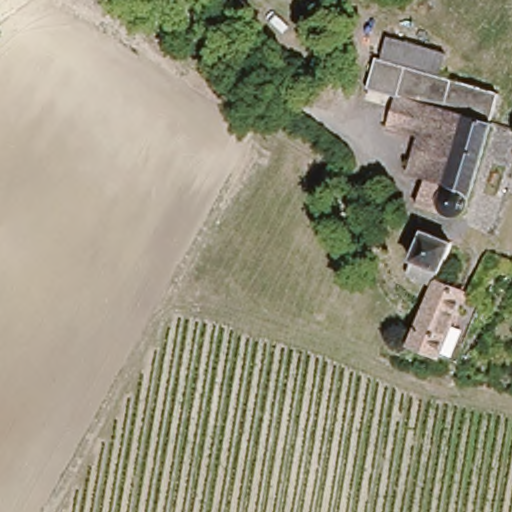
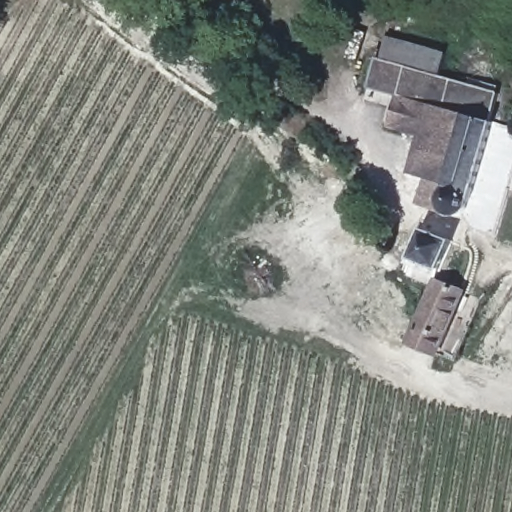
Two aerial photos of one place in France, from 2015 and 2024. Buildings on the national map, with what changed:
unchanged [(442,52),(434,77),(397,67),(404,41),(442,52)]
unchanged [(491,121),(481,150),(483,154),(466,213),(457,219),(421,210),(428,184),(408,178),(418,141),(385,130),(393,98),(365,89),(375,61),(397,67),(434,77),(495,94),(487,120),(491,121)]
unchanged [(438,281),(407,270),(422,227),(453,239),(439,278),(438,281)]
unchanged [(439,278),(468,287),(446,352),(416,343),(430,303),(438,281),(439,278)]

